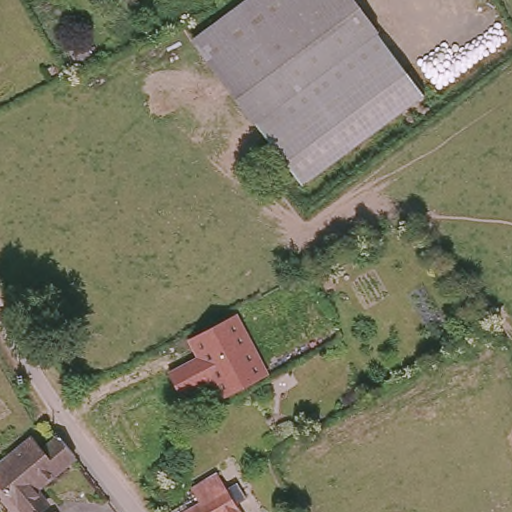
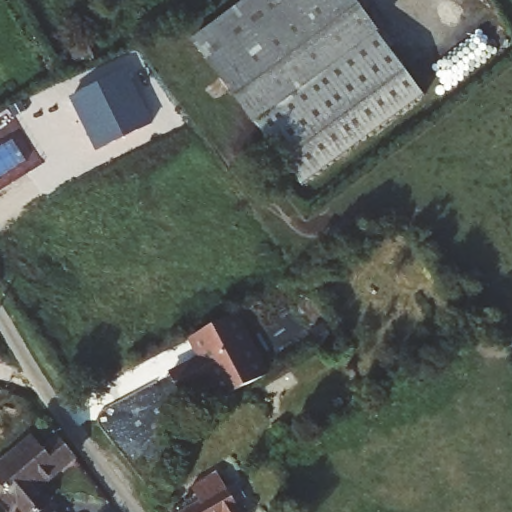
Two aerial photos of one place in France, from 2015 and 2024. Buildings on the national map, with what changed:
unchanged [(262,127),(195,51),(252,0),(351,0),(375,26),(262,127)]
unchanged [(425,96),(304,186),(262,127),(375,26),(425,96)]
new [(72,97),(125,70),(152,123),(98,150),(72,97)]
unchanged [(221,399),(214,384),(182,400),(167,370),(196,356),(188,338),(237,313),(270,375),(221,399)]
unchanged [(32,490),(44,504),(34,512),(20,512),(0,487),(0,462),(27,440),(39,455),(55,441),(70,458),(32,490)]
unchanged [(196,506),(189,496),(187,493),(210,476),(215,482),(220,488),(238,512),(188,512),(196,506)]

